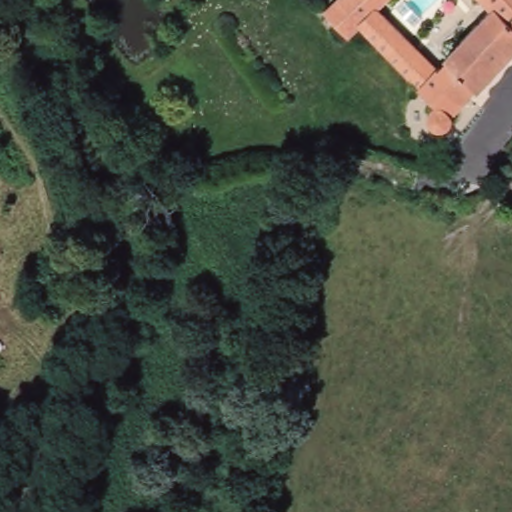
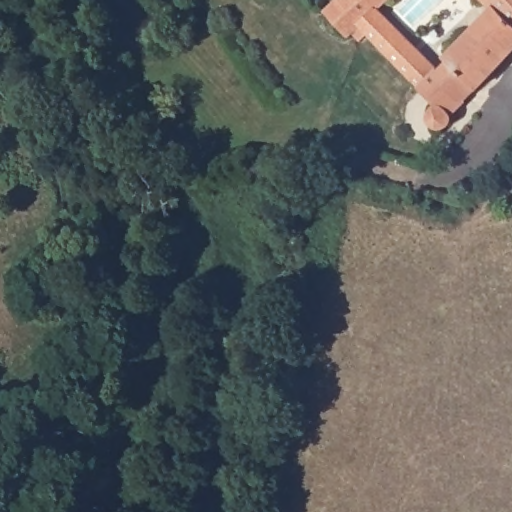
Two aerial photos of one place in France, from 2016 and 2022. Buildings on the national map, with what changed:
unchanged [(470,96),(459,108),(453,115),(454,117),(454,119),(453,121),(452,124),(450,126),(447,128),(443,128),(440,128),(437,126),(434,124),(432,121),(431,118),(431,114),(433,111),(435,108),(437,106),(438,104),(436,103),(421,87),(361,25),(350,34),(328,10),(331,8),(339,0),(512,0),(512,53),(470,96)]

